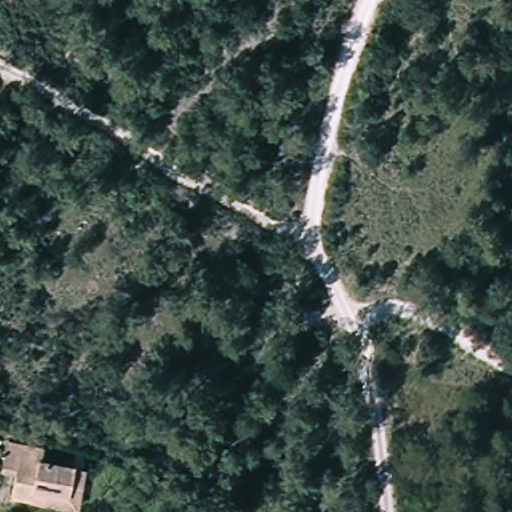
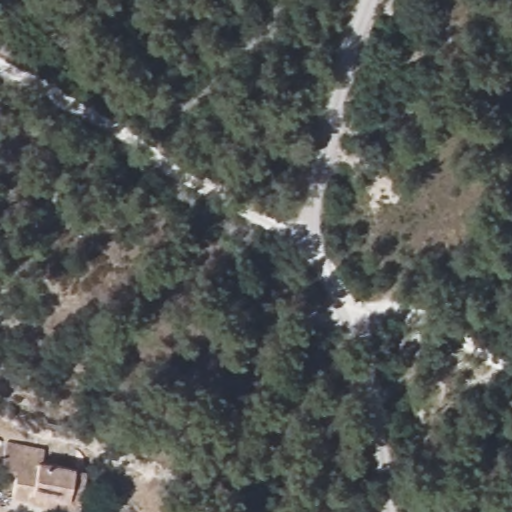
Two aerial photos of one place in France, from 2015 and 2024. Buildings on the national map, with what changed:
unchanged [(48,457),(78,461),(73,493),(84,493),(81,510),(16,499),(18,467),(6,466),(9,441),(48,446),(48,457)]

